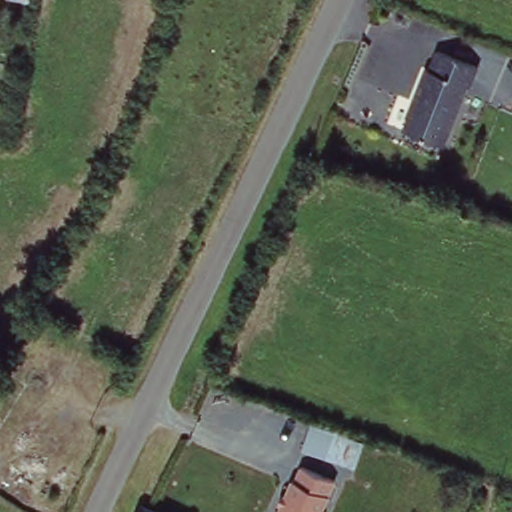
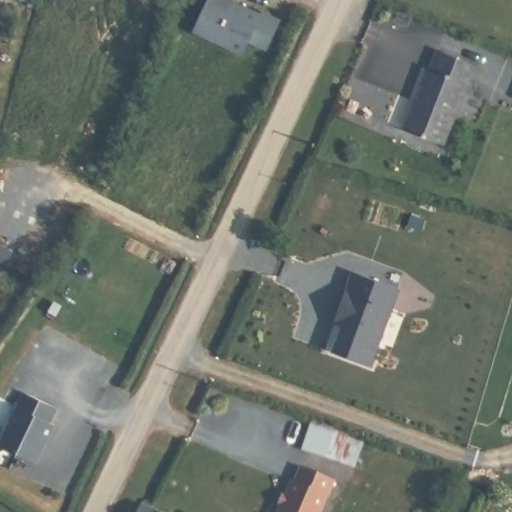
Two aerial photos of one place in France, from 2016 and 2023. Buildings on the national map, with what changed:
unchanged [(15,0),(33,0),(32,4),(15,0)]
new [(263,10),(282,20),(267,51),(250,43),(244,55),(193,31),(208,0),(234,0),(262,13),(263,10)]
unchanged [(432,70),(437,70),(445,54),(483,70),(475,89),(471,87),(441,147),(404,130),(432,70)]
new [(357,273),(398,289),(370,366),(331,352),(357,273)]
new [(24,393),(57,408),(51,421),(55,423),(36,463),(0,446),(0,442),(17,407),(24,393)]
new [(302,450),(312,423),(364,441),(355,468),(302,450)]
unchanged [(290,478),(294,480),(302,467),(335,484),(320,512),(273,512),(290,478)]
unchanged [(157,512),(132,512),(137,502),(157,512)]

